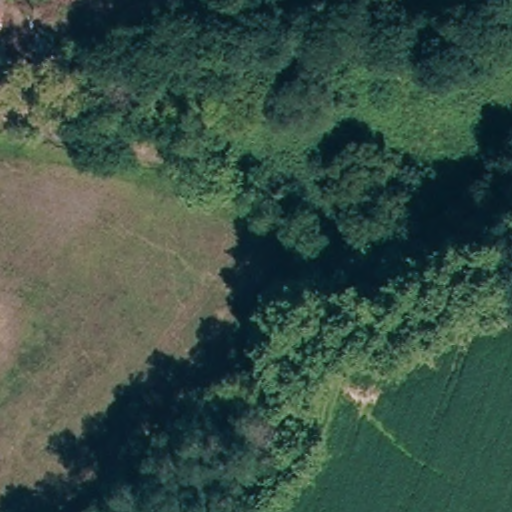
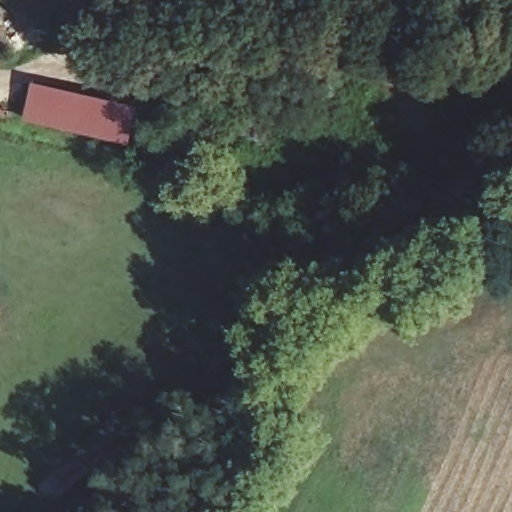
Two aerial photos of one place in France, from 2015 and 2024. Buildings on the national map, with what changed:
new [(35,80),(114,97),(107,134),(27,122),(35,80)]

